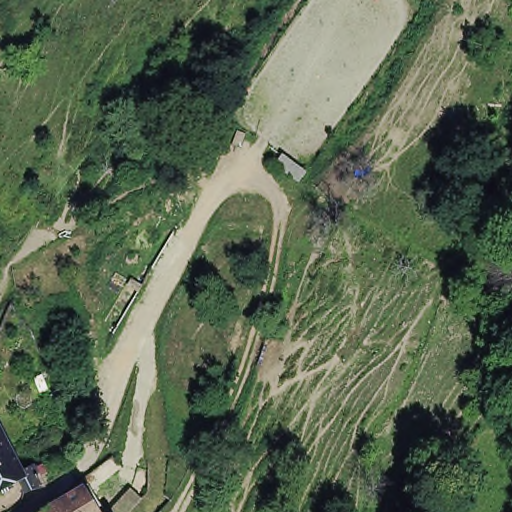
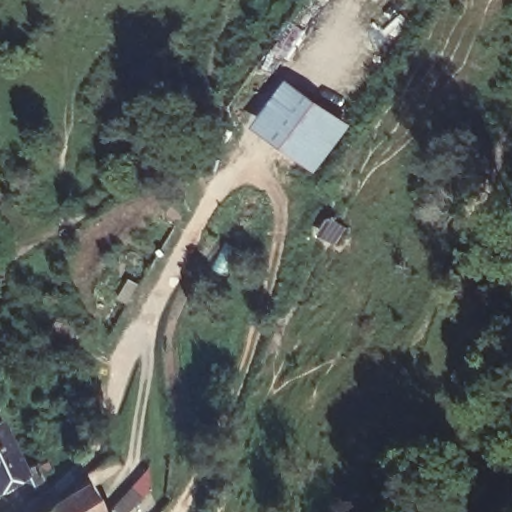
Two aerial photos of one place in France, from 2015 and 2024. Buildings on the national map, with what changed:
new [(291,81),(353,125),(317,175),(257,128),(291,81)]
new [(331,217),(350,229),(339,248),(320,235),(331,217)]
unchanged [(21,479),(0,491),(0,422),(26,471),(39,465),(40,468),(50,463),(53,471),(43,476),(47,486),(27,491),(21,479)]
unchanged [(84,499),(92,494),(104,512),(63,512),(84,499)]

